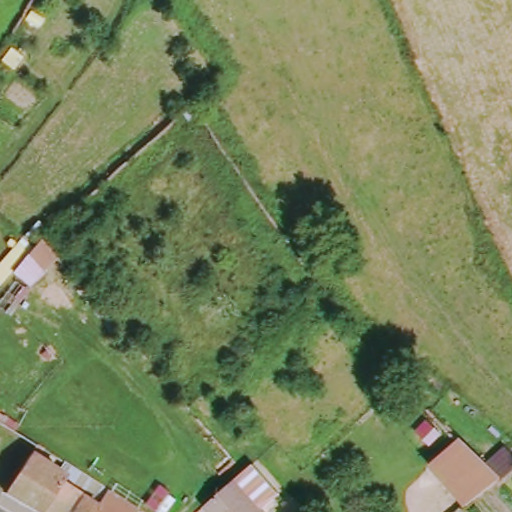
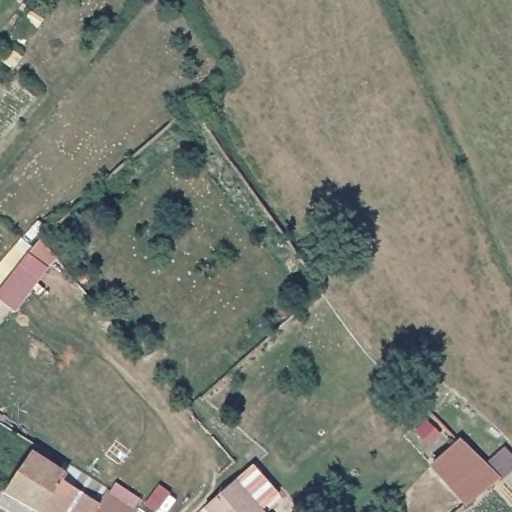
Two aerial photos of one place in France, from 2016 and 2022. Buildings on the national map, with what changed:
unchanged [(417,434),(430,422),(444,436),(432,449),(417,434)]
unchanged [(487,466),(507,451),(512,457),(512,472),(502,480),(467,509),(430,468),(462,440),(487,466)]
unchanged [(93,484),(75,512),(36,512),(26,506),(8,496),(35,457),(52,469),(63,477),(69,468),(93,484)]
unchanged [(99,512),(75,512),(93,484),(110,495),(99,512)]
unchanged [(257,512),(208,512),(234,487),(257,512)]
unchanged [(135,512),(99,512),(110,495),(135,512)]

